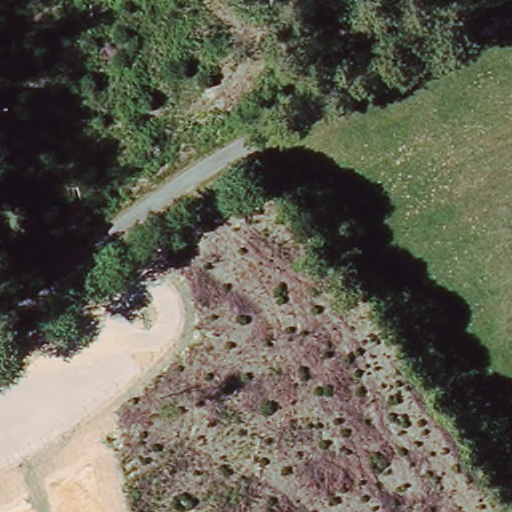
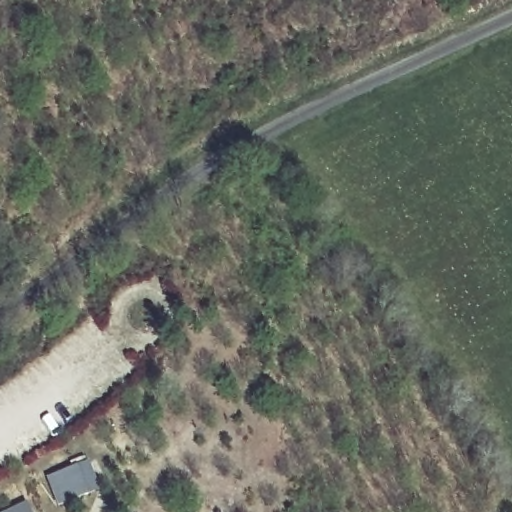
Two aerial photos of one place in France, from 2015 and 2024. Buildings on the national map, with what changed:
new [(101,493),(58,509),(48,479),(90,462),(101,493)]
new [(31,512),(7,512),(27,503),(31,512)]

